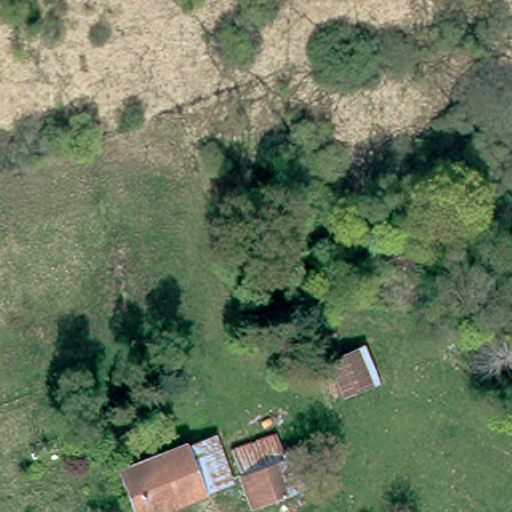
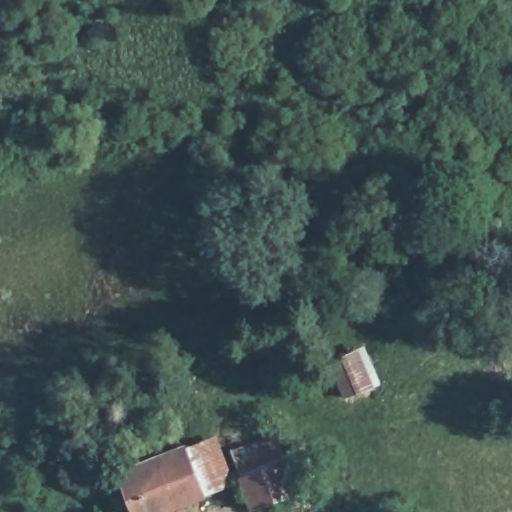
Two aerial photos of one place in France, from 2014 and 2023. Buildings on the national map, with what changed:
unchanged [(326,361),(369,343),(380,372),(346,391),(326,361)]
unchanged [(185,447),(185,450),(202,444),(219,484),(203,490),(149,512),(139,512),(122,472),(185,447)]
unchanged [(297,460),(305,478),(295,482),(299,491),(260,507),(247,474),(287,458),(289,464),(297,460)]

